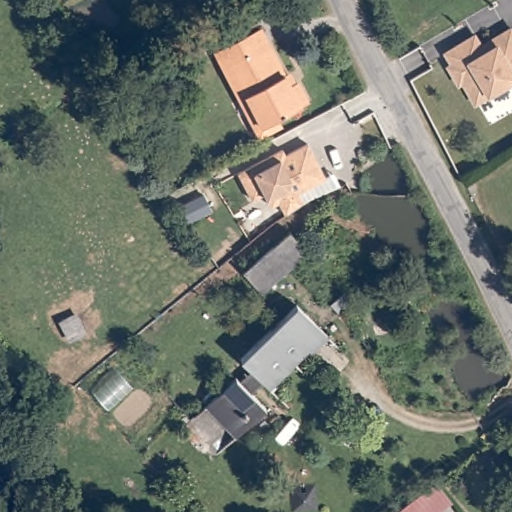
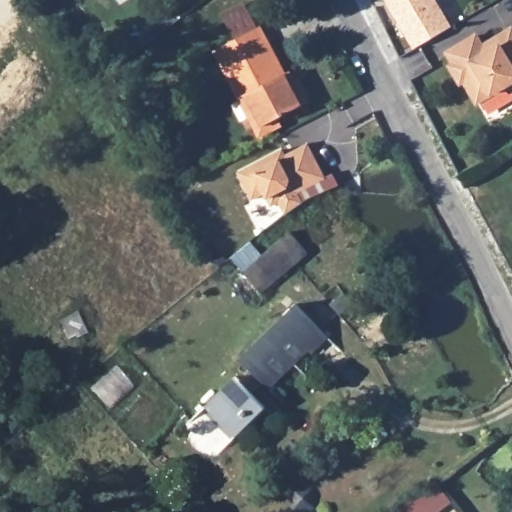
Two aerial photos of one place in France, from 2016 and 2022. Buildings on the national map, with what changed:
new [(412,49),(384,0),(385,0),(435,0),(450,26),(412,49)]
unchanged [(462,85),(458,87),(447,65),(450,64),(443,51),(477,32),(483,43),(512,27),(512,84),(475,105),(462,85)]
unchanged [(264,136),(226,68),(217,52),(260,28),(292,84),(297,80),(310,101),(285,116),(288,123),(264,136)]
unchanged [(325,179),(298,193),(301,200),(292,211),(281,211),(277,204),(270,207),(264,196),(250,202),(236,172),(283,148),(286,154),(307,144),(325,179)]
unchanged [(295,229),(310,251),(261,288),(245,266),(295,229)]
unchanged [(298,300),(330,332),(310,350),(307,347),(270,383),(267,380),(257,390),(269,403),(240,430),(209,398),(237,371),(242,377),(255,367),(242,354),(298,300)]

